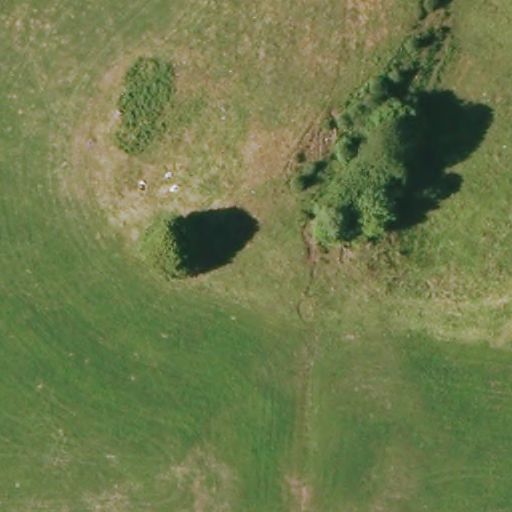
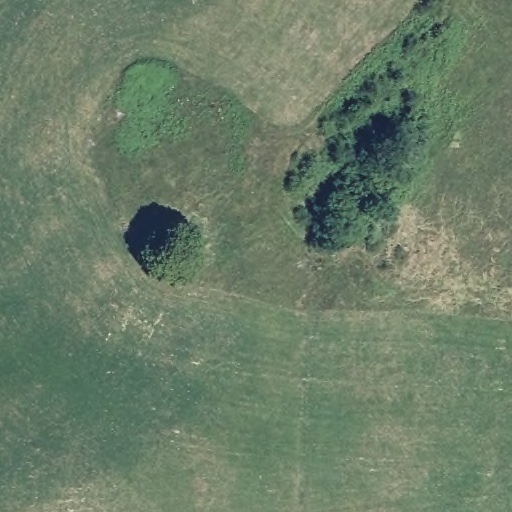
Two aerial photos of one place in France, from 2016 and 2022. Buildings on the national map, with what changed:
[]

